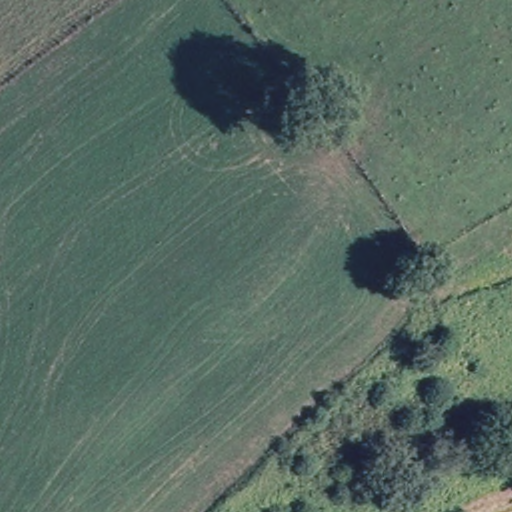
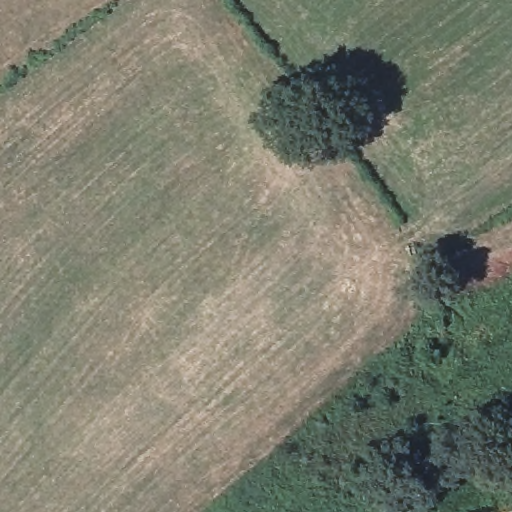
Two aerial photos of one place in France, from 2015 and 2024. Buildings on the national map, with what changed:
[]

